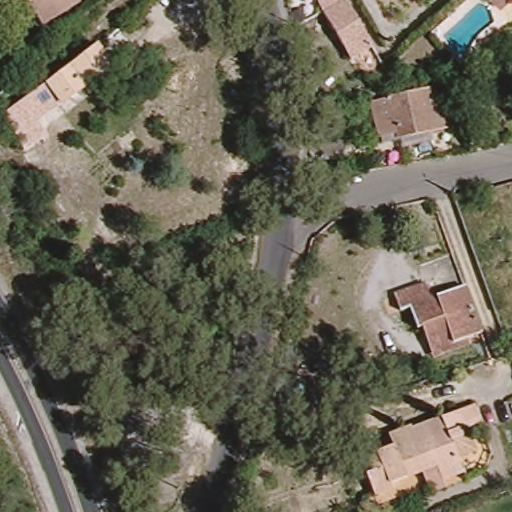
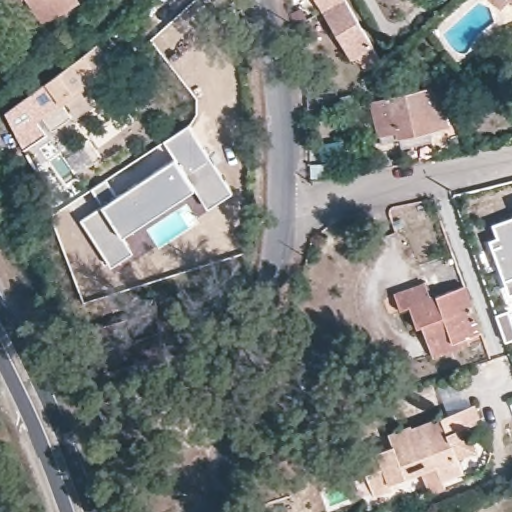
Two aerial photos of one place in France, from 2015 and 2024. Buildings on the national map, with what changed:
unchanged [(47,26),(31,0),(50,0),(83,0),(85,3),(47,26)]
unchanged [(317,0),(339,0),(322,10),(317,0)]
unchanged [(345,0),(370,43),(371,45),(350,57),(322,10),(339,0),(345,0)]
unchanged [(58,74),(96,45),(112,65),(90,86),(66,105),(42,124),(49,139),(24,151),(6,112),(42,85),(58,74)]
unchanged [(394,96),(433,86),(444,95),(447,103),(452,128),(404,139),(394,96)]
unchanged [(373,146),(364,106),(394,96),(404,139),(373,146)]
new [(100,205),(90,189),(189,123),(234,193),(207,211),(194,192),(125,237),(134,252),(111,268),(80,219),(100,205)]
new [(103,163),(93,168),(85,149),(95,144),(102,159),(103,163)]
new [(492,223),(512,214),(512,290),(508,292),(487,238),(497,234),(492,223)]
unchanged [(427,322),(421,324),(413,303),(404,305),(399,290),(429,279),(435,293),(468,282),(485,328),(470,333),(472,339),(437,352),(431,334),(427,322)]
demolished [(170,369),(150,375),(147,361),(137,364),(106,373),(93,329),(154,312),(170,369)]
unchanged [(433,497),(430,490),(425,477),(395,488),(396,493),(378,500),(370,477),(375,475),(370,459),(396,450),(392,440),(415,432),(416,434),(477,411),(484,428),(470,433),(478,457),(461,464),(466,477),(445,485),(447,492),(433,497)]

